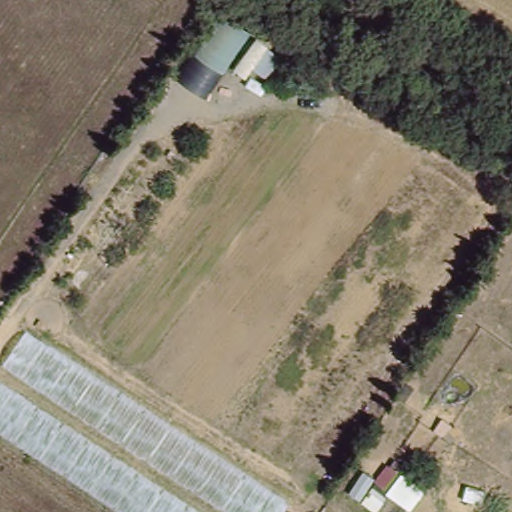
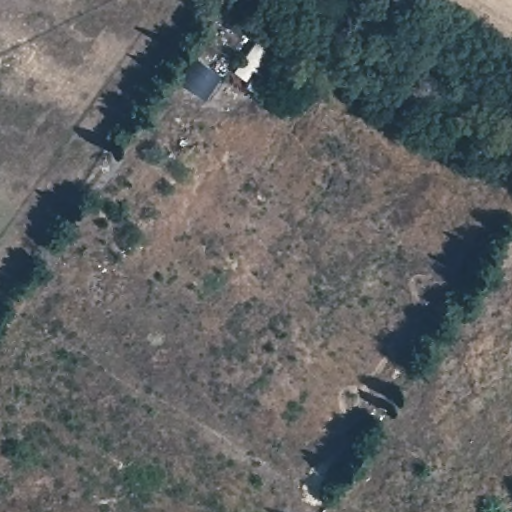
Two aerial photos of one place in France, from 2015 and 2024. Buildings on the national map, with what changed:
unchanged [(214,14),(249,32),(212,100),(175,75),(214,14)]
unchanged [(260,37),(287,60),(272,86),(255,74),(252,82),(238,74),(260,37)]
demolished [(283,512),(111,512),(0,440),(0,365),(22,332),(286,507),(283,512)]

